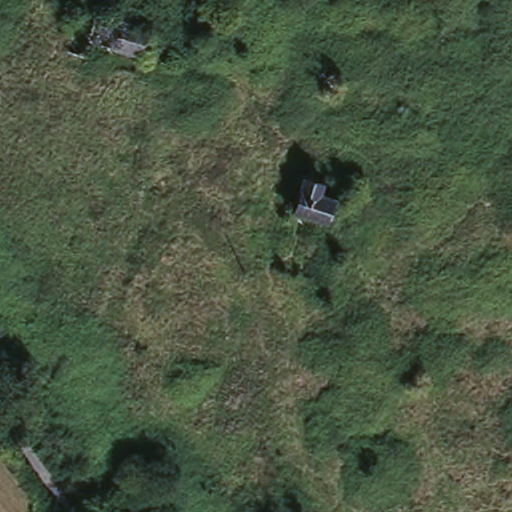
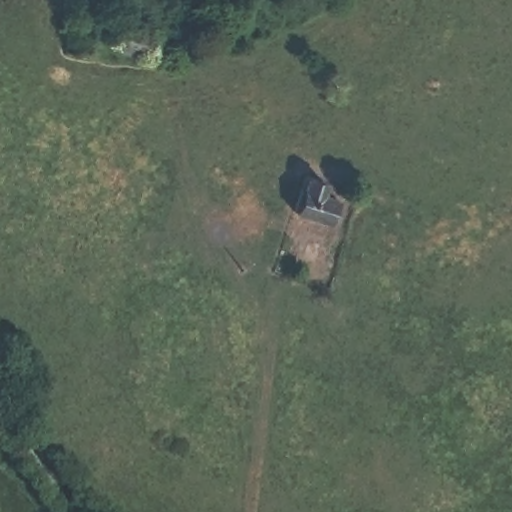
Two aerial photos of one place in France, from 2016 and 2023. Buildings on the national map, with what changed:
unchanged [(151,20),(142,60),(94,45),(87,60),(59,52),(75,3),(151,20)]
unchanged [(320,179),(318,193),(337,199),(337,206),(331,223),(289,210),(301,174),(320,179)]

